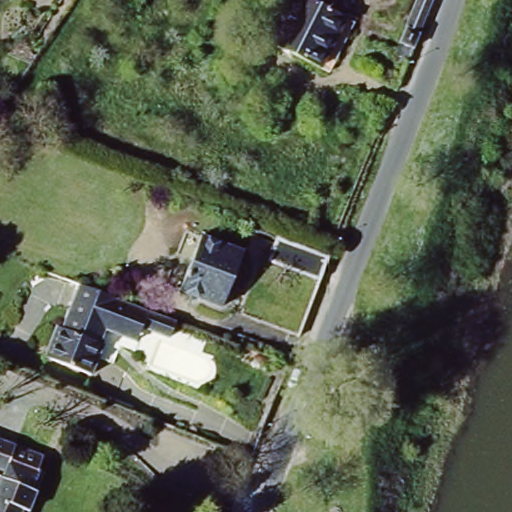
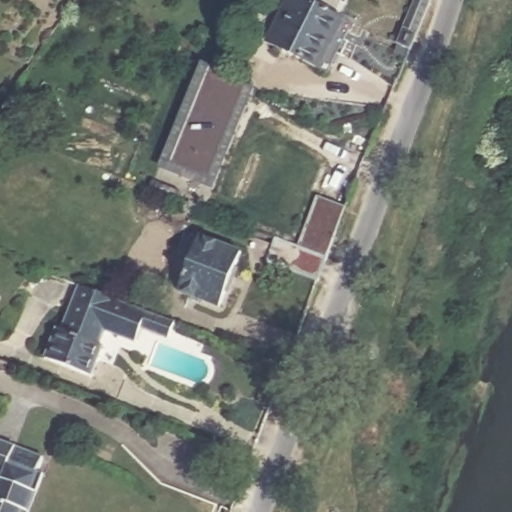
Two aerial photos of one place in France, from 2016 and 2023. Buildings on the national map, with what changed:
unchanged [(290,0),(312,0),(287,51),(270,43),(290,0)]
unchanged [(317,65),(287,51),(312,0),(314,0),(342,13),(353,18),(328,70),(317,65)]
unchanged [(420,29),(407,63),(393,57),(416,0),(427,0),(430,1),(420,29)]
new [(201,61),(255,89),(215,189),(160,166),(201,61)]
new [(300,246),(317,196),(346,206),(328,256),(300,246)]
unchanged [(242,251),(221,306),(180,290),(200,236),(242,251)]
unchanged [(320,281),(267,260),(276,236),(328,256),(320,281)]
unchanged [(181,318),(172,340),(145,329),(139,346),(129,342),(119,368),(100,361),(95,373),(48,356),(77,279),(152,307),(181,318)]
unchanged [(0,465),(0,436),(44,453),(39,467),(44,469),(27,512),(0,512),(0,480),(5,467),(0,465)]

